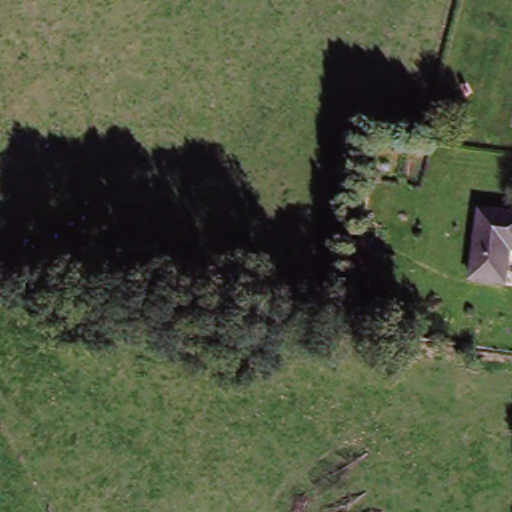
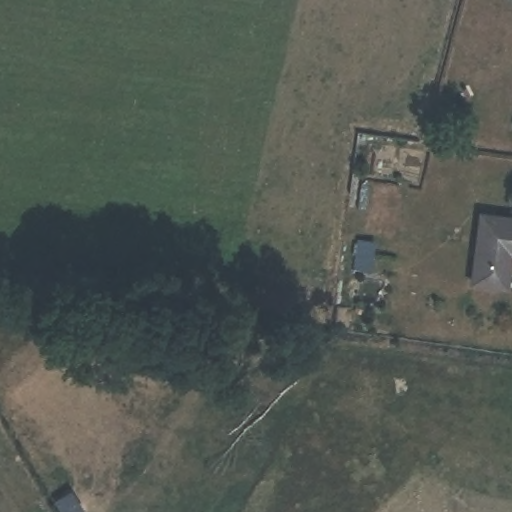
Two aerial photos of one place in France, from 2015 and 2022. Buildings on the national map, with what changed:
unchanged [(512,217),(512,255),(505,254),(501,289),(468,284),(477,212),(512,217)]

